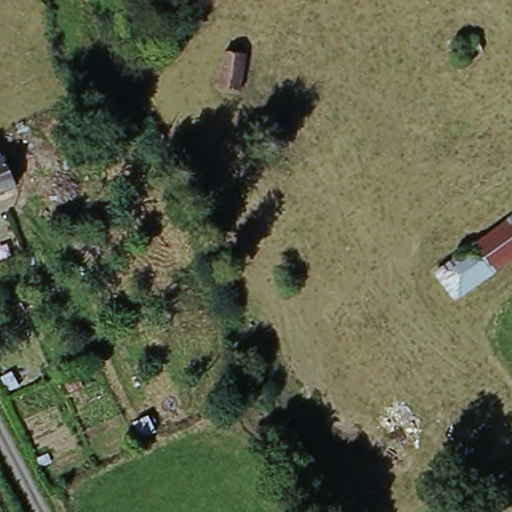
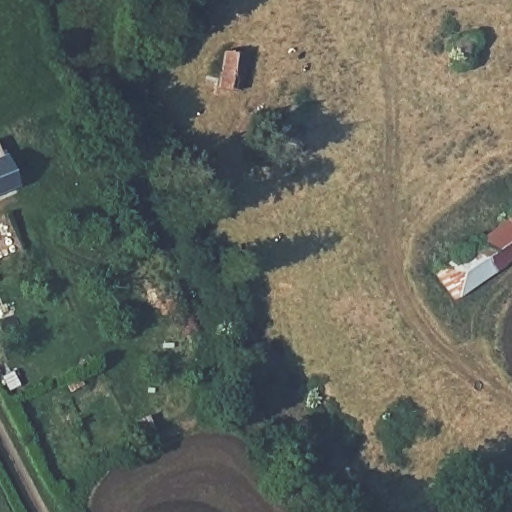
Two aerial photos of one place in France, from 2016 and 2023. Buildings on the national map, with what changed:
unchanged [(488,50),(460,62),(447,37),(476,24),(488,50)]
unchanged [(245,91),(220,88),(225,52),(250,54),(245,91)]
unchanged [(0,188),(0,150),(13,183),(0,188)]
unchanged [(469,228),(472,232),(501,210),(510,222),(512,221),(512,269),(486,288),(463,258),(467,256),(454,242),(469,228)]
unchanged [(486,288),(461,308),(439,277),(463,258),(486,288)]

